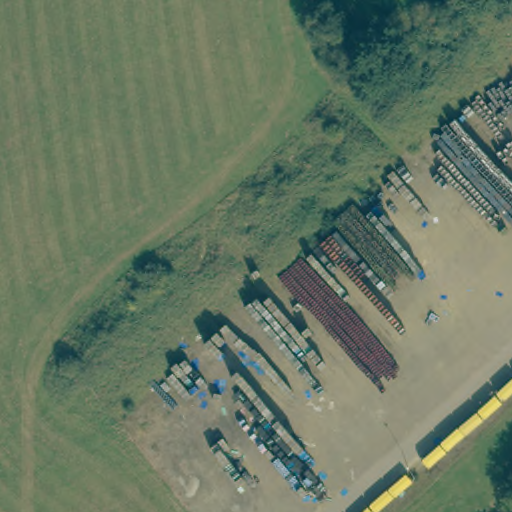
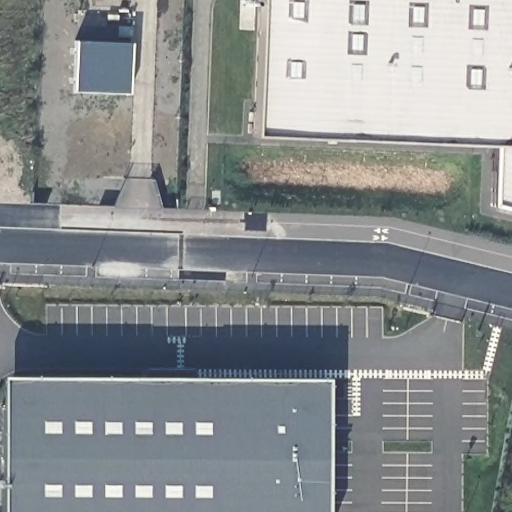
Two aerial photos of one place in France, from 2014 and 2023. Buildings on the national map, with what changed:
new [(491,204),(494,146),(258,133),(263,0),(512,0),(512,210),(491,204)]
new [(76,40),(131,43),(128,93),(74,92),(76,40)]
new [(2,376),(326,378),(325,512),(2,512),(2,376)]

